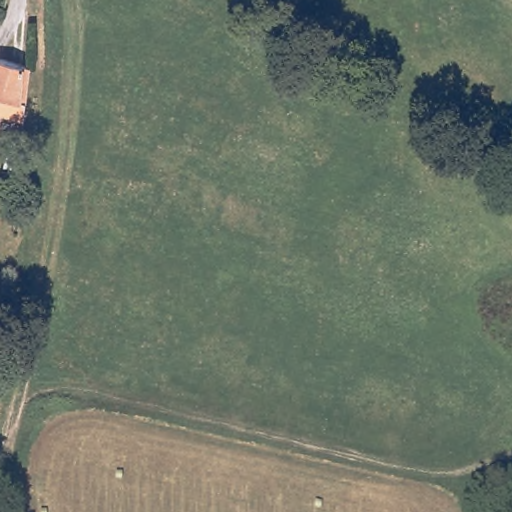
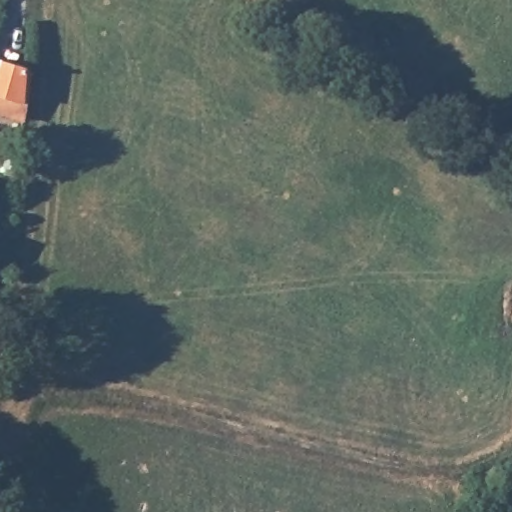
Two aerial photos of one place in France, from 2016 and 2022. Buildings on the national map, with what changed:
unchanged [(0,115),(0,59),(28,65),(22,121),(0,115)]

